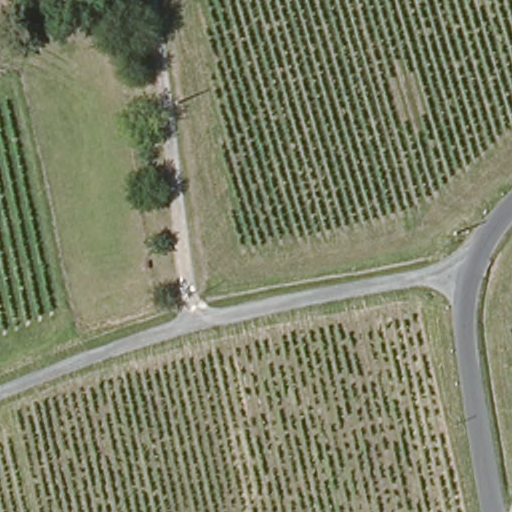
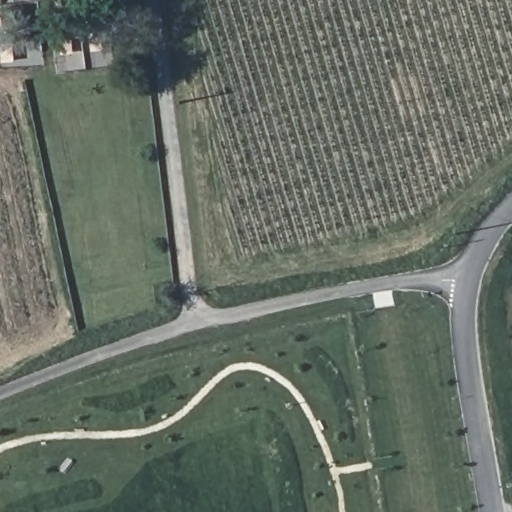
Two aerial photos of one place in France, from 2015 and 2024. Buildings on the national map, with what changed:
[]

